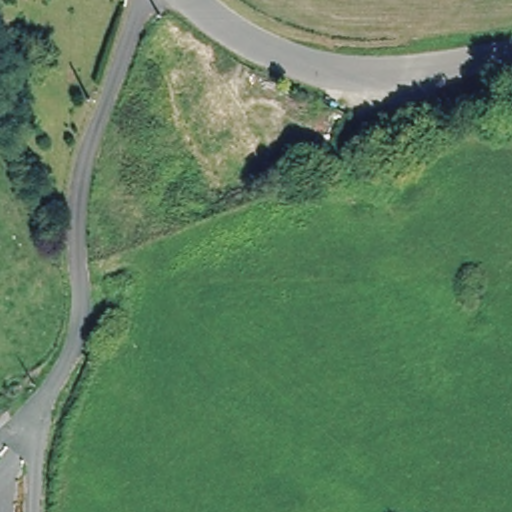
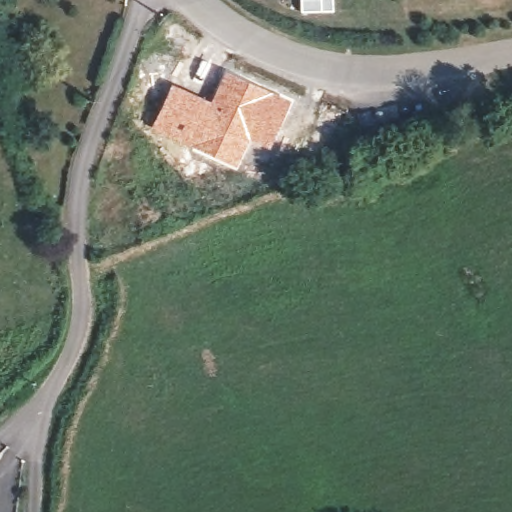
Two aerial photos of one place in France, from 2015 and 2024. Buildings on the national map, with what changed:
new [(333,11),(300,12),(299,0),(332,0),(333,11)]
new [(171,84),(210,101),(225,69),(293,99),(269,152),(251,143),(237,170),(150,130),(171,84)]

